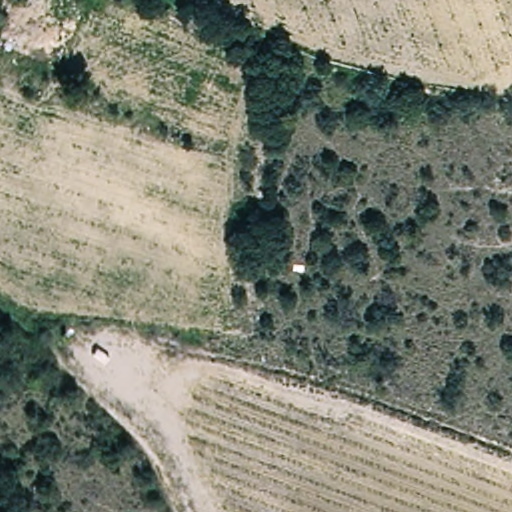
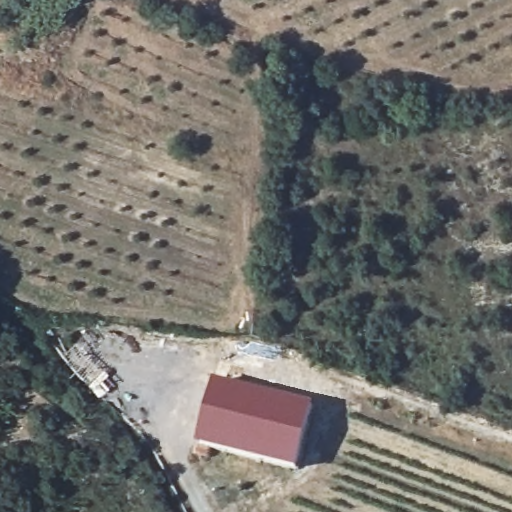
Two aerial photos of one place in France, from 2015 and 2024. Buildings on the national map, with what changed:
new [(198,446),(215,380),(315,405),(297,471),(198,446)]

